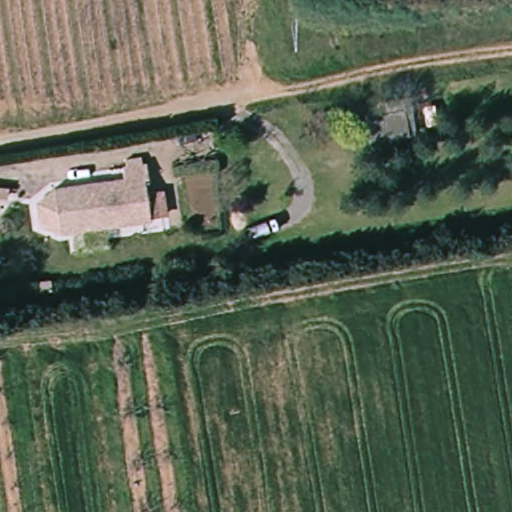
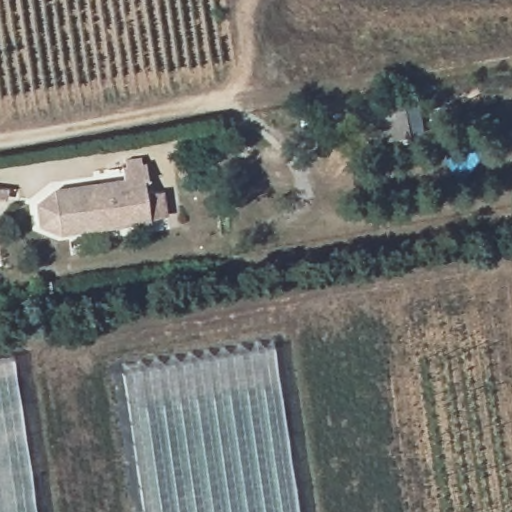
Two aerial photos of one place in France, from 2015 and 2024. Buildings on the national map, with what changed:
unchanged [(409,118),(361,124),(357,107),(405,96),(409,118)]
unchanged [(119,179),(118,164),(148,162),(157,223),(75,237),(68,185),(119,179)]
new [(75,237),(62,239),(39,227),(35,203),(54,188),(68,185),(75,237)]
new [(274,347),(298,512),(144,512),(123,372),(274,347)]
new [(13,356),(37,512),(0,512),(0,358),(13,356)]

